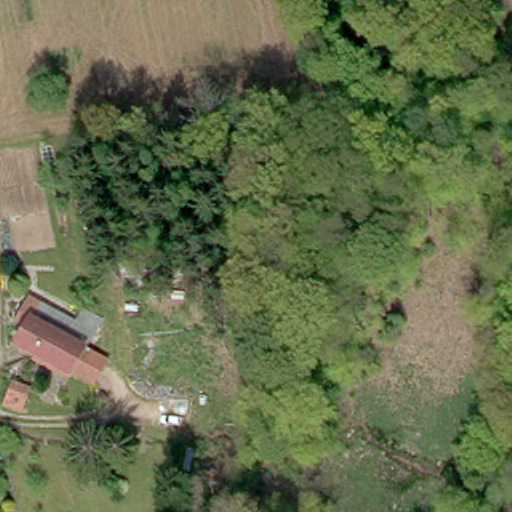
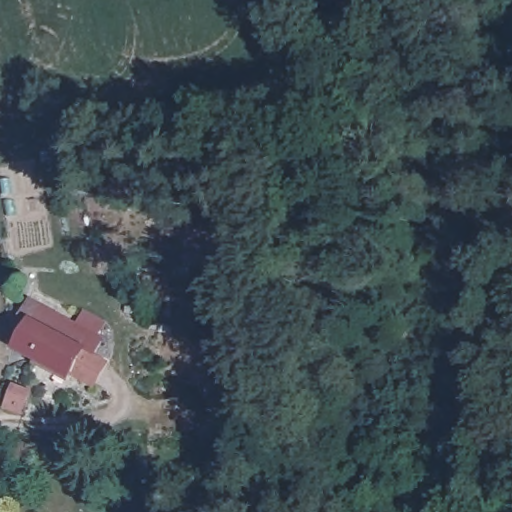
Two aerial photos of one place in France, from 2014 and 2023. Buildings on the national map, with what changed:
unchanged [(18,358),(12,354),(17,345),(37,311),(90,342),(63,384),(18,358)]

